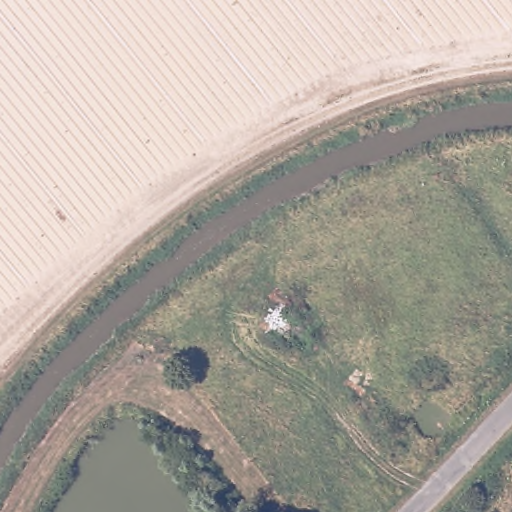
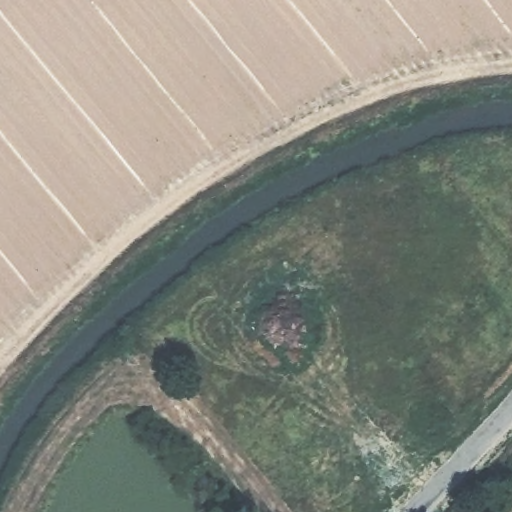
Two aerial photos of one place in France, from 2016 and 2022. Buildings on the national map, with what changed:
[]

